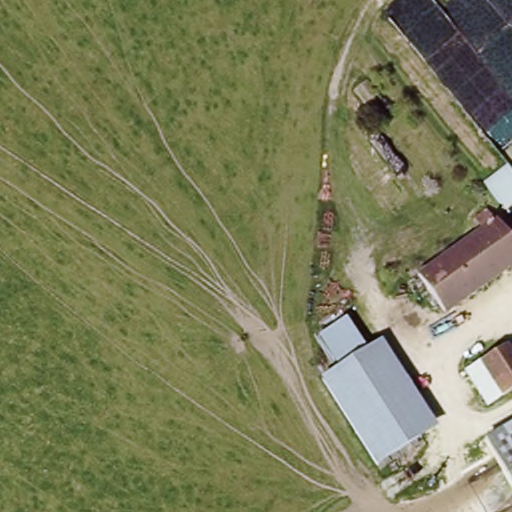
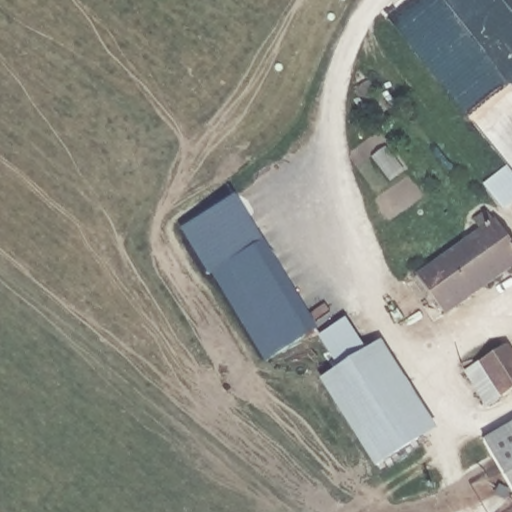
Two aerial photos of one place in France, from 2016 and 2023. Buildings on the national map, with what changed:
new [(266,362),(212,274),(209,277),(182,229),(236,198),(317,328),(266,362)]
unchanged [(476,239),(469,228),(482,219),(493,233),(497,231),(511,253),(512,252),(512,274),(448,317),(441,304),(422,276),(476,239)]
unchanged [(342,312),(368,346),(336,366),(314,332),(342,312)]
unchanged [(336,366),(368,346),(385,336),(440,425),(375,466),(318,378),(325,373),(336,366)]
unchanged [(508,346),(512,353),(512,393),(492,405),(471,369),(508,346)]
unchanged [(482,438),(512,421),(512,491),(482,438)]

